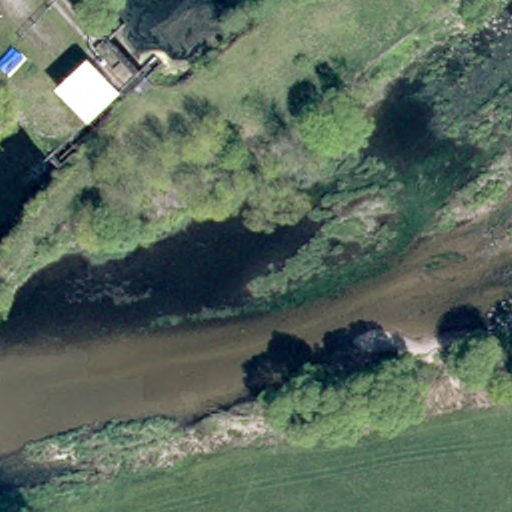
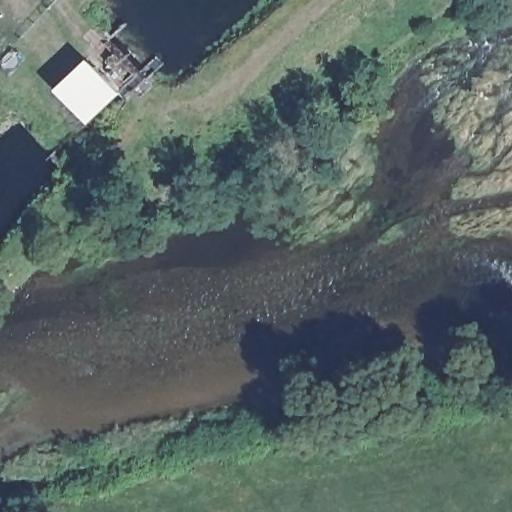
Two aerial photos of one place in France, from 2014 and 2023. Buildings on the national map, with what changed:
unchanged [(117,87),(85,116),(62,92),(82,73),(93,63),(102,71),(117,87)]

